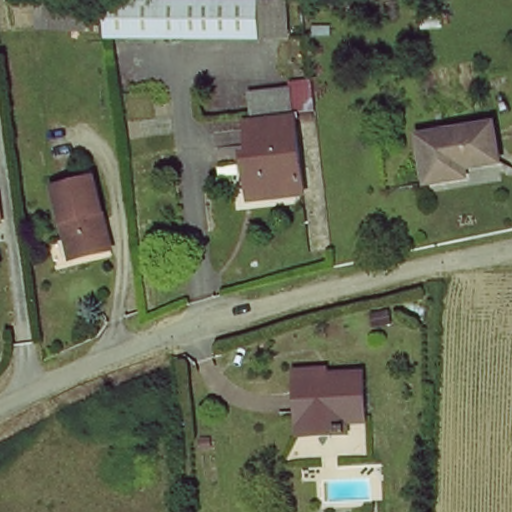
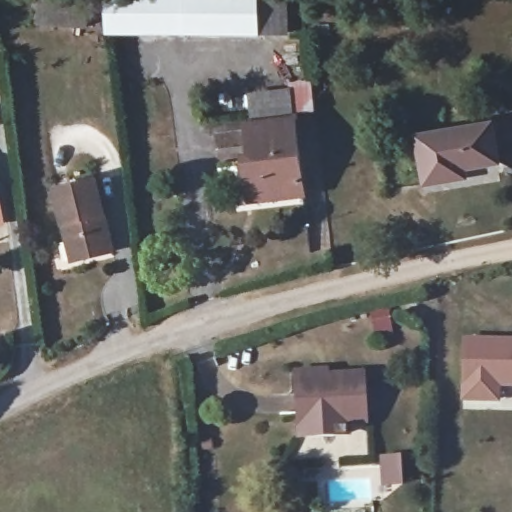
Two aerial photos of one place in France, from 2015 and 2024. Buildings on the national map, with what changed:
unchanged [(86,26),(41,26),(41,0),(85,0),(86,26)]
unchanged [(193,29),(113,29),(115,0),(193,0),(193,29)]
unchanged [(281,28),(256,27),(257,30),(193,29),(193,0),(281,0),(281,28)]
unchanged [(248,201),(245,175),(252,173),(243,94),(289,90),(289,85),(313,83),(316,113),(292,116),(301,195),(248,201)]
unchanged [(485,123),(492,160),(460,166),(462,176),(421,183),(412,135),(485,123)]
unchanged [(59,237),(47,189),(95,178),(113,245),(73,255),(64,257),(59,237)]
new [(463,337),(512,338),(512,388),(501,387),(500,402),(461,402),(463,337)]
unchanged [(362,419),(338,419),(338,435),(311,436),(298,437),(296,372),(313,372),(313,380),(359,378),(362,419)]

